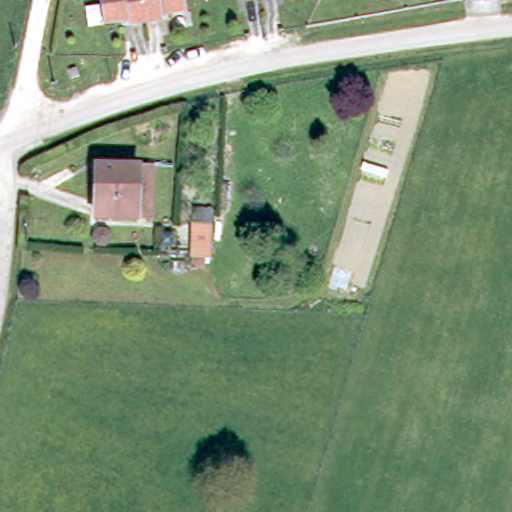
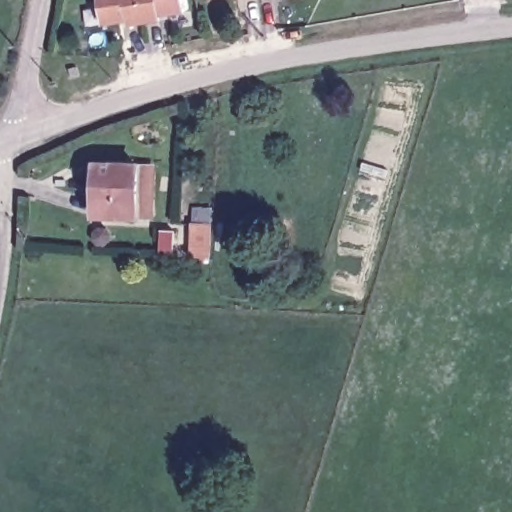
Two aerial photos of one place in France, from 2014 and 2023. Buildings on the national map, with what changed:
unchanged [(157,30),(125,36),(123,31),(99,35),(93,0),(178,0),(183,22),(156,25),(157,30)]
unchanged [(235,0),(214,4),(214,0),(235,0)]
unchanged [(239,0),(268,0),(241,4),(239,0)]
unchanged [(99,163),(139,165),(136,215),(96,213),(99,163)]
unchanged [(193,227),(213,229),(211,259),(191,257),(193,227)]

